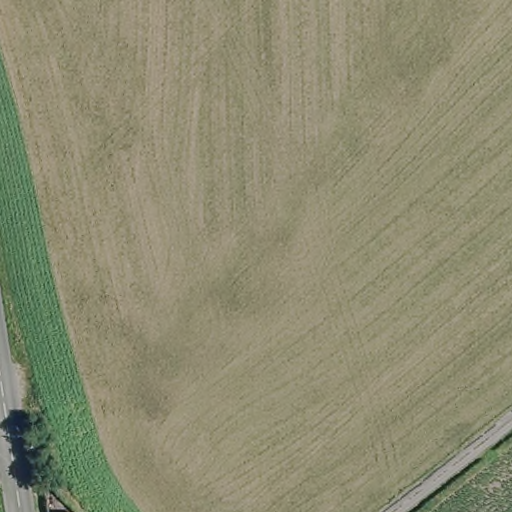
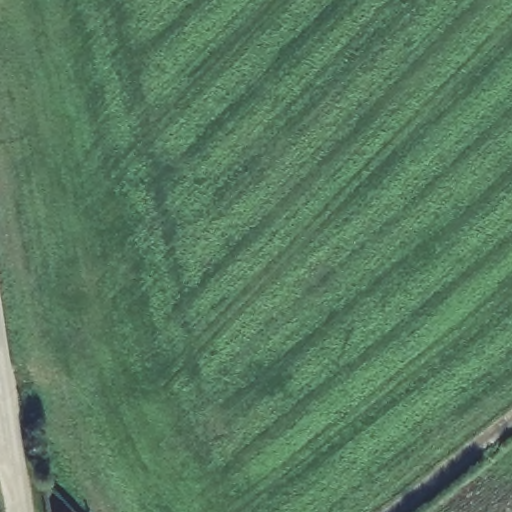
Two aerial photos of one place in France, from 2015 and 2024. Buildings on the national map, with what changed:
[]

